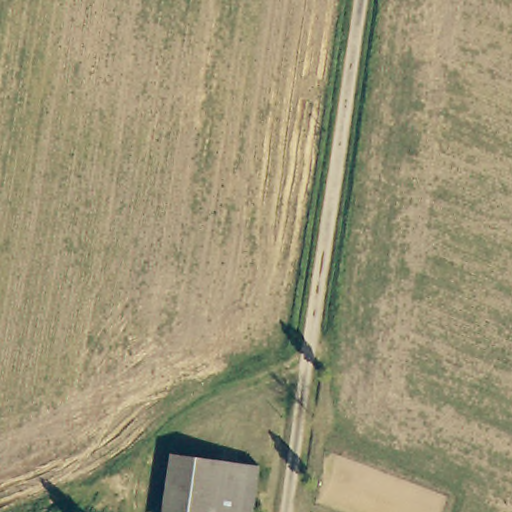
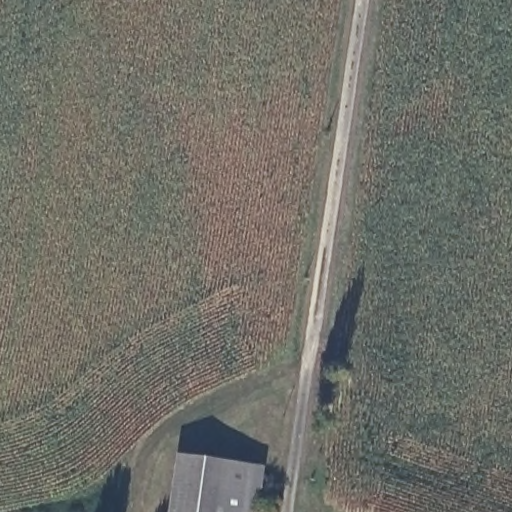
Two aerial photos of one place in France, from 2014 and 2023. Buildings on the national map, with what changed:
unchanged [(181,456),(219,461),(212,512),(174,512),(181,456)]
unchanged [(260,466),(253,512),(212,512),(219,461),(260,466)]

